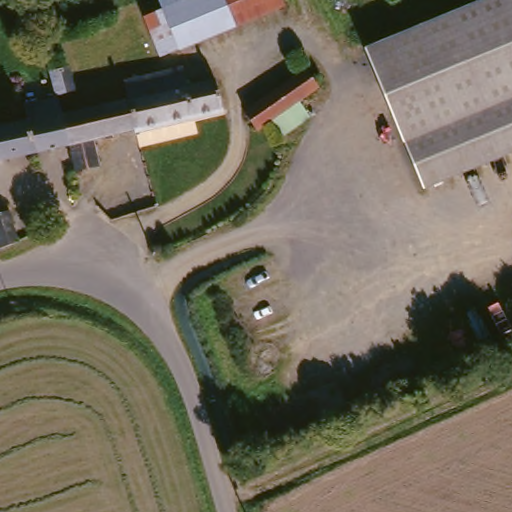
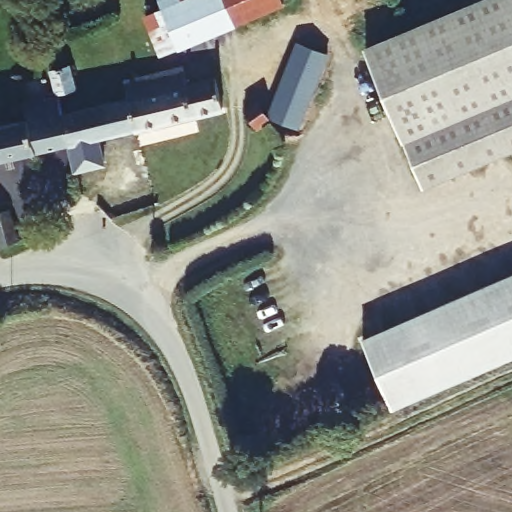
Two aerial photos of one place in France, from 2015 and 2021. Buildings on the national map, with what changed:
unchanged [(159,55),(144,18),(164,10),(188,0),(281,0),(284,6),(159,55)]
unchanged [(160,0),(188,0),(164,10),(160,0)]
unchanged [(486,0),(512,0),(512,152),(423,189),(367,49),(415,29),(446,16),(486,0)]
unchanged [(126,99),(124,84),(212,64),(223,109),(94,139),(100,166),(96,167),(76,172),(71,144),(63,113),(126,99)]
unchanged [(322,81),(278,115),(264,124),(249,106),(309,64),(322,81)]
unchanged [(69,65),(76,90),(57,94),(51,70),(69,65)]
unchanged [(316,111),(289,130),(278,115),(304,96),(316,111)]
unchanged [(63,113),(71,144),(0,162),(0,126),(17,123),(15,108),(58,98),(63,113)]
unchanged [(2,247),(0,242),(0,213),(9,210),(20,240),(2,247)]
new [(512,364),(398,412),(369,343),(512,283),(512,364)]

